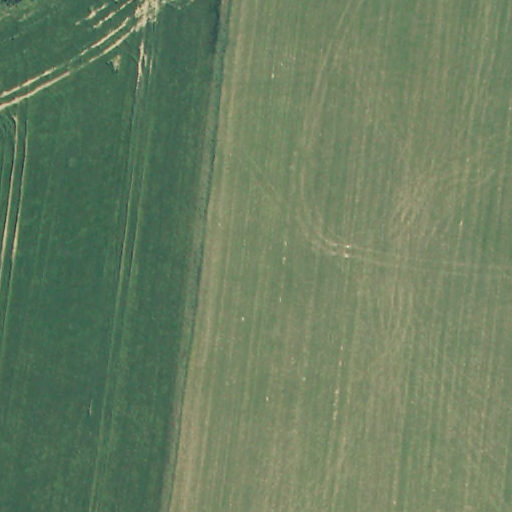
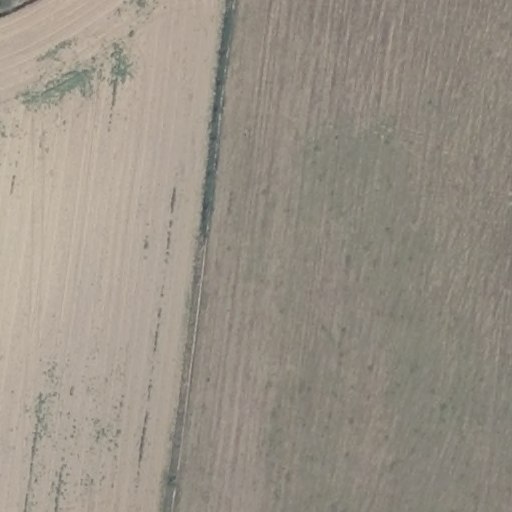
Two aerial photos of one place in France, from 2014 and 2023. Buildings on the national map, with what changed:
[]

